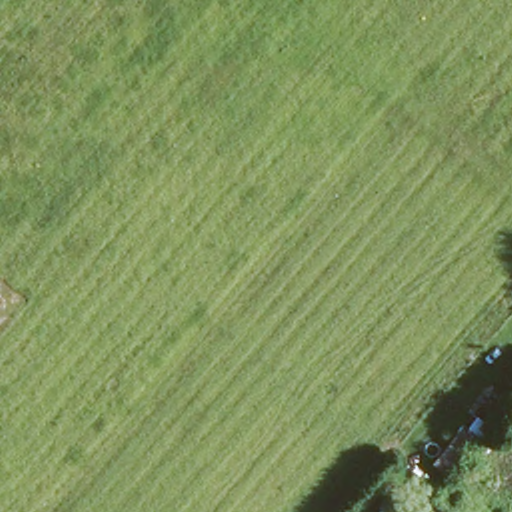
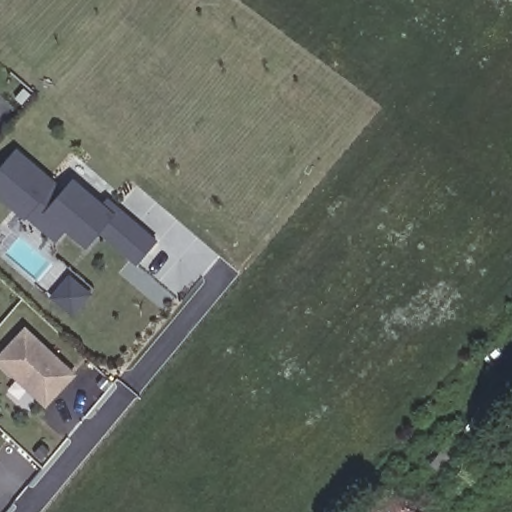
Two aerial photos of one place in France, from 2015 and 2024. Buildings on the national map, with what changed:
new [(63,191),(71,182),(100,208),(109,198),(158,241),(137,265),(100,231),(85,248),(66,231),(53,244),(0,197),(0,168),(17,150),(63,191)]
new [(75,374),(44,408),(0,365),(0,354),(26,327),(75,374)]
unchanged [(455,426),(461,431),(472,420),(484,431),(443,477),(425,462),(455,426)]

